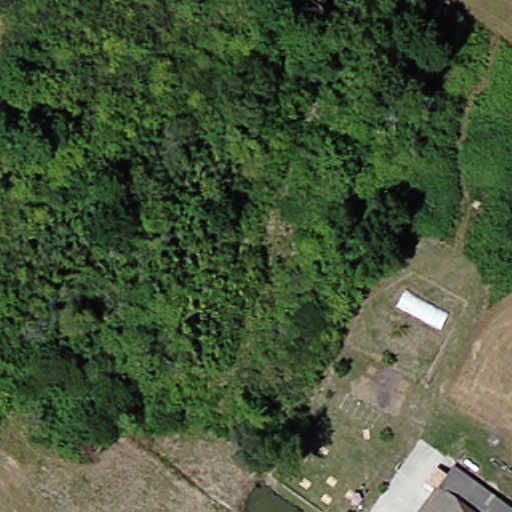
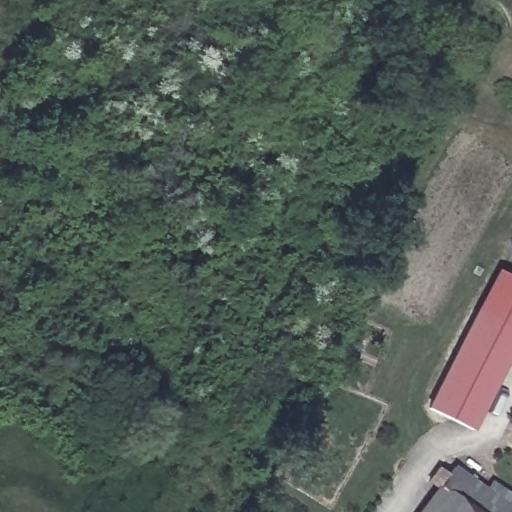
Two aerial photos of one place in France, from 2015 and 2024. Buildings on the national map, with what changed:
new [(512,277),(512,328),(475,311),(497,270),(512,277)]
new [(512,328),(512,353),(473,431),(427,409),(475,311),(512,328)]
unchanged [(512,503),(512,512),(428,512),(462,468),(512,503)]

